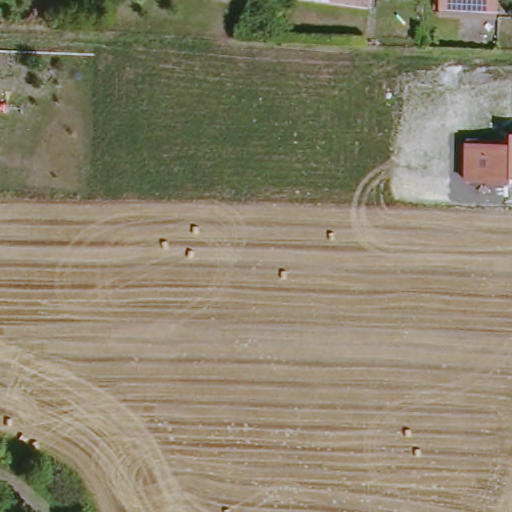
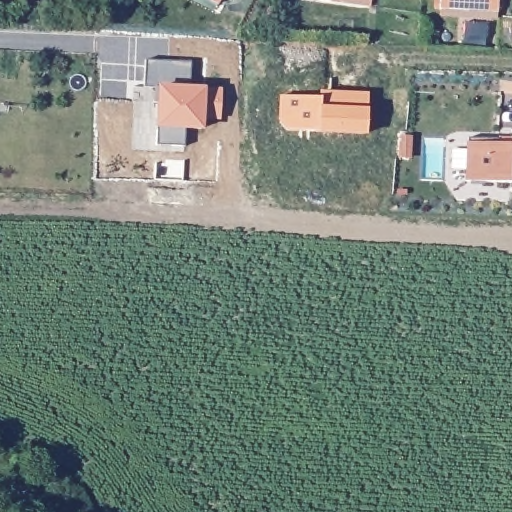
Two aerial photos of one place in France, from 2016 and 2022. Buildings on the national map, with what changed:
unchanged [(333,0),(373,0),(372,8),(332,2),(333,0)]
unchanged [(437,11),(437,0),(494,0),(494,15),(437,11)]
new [(190,63),(191,88),(205,88),(222,89),(220,120),(204,121),(203,131),(184,130),(183,145),(157,145),(156,128),(157,88),(145,87),(146,61),(190,63)]
new [(367,109),(367,136),(318,134),(289,131),(277,121),(280,97),(321,98),(322,91),(367,93),(367,109)]
unchanged [(512,146),(512,135),(512,179),(510,179),(510,185),(466,182),(467,144),(512,146)]

